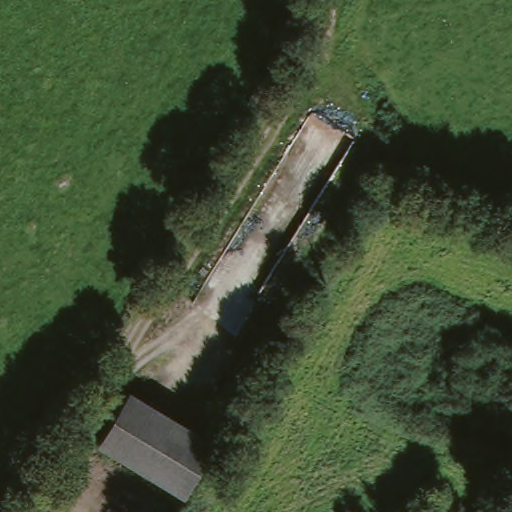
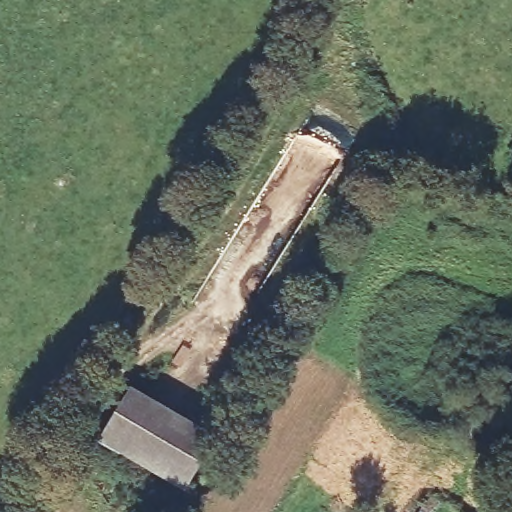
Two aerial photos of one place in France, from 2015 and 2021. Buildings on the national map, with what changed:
unchanged [(126,391),(217,439),(189,492),(98,443),(126,391)]

